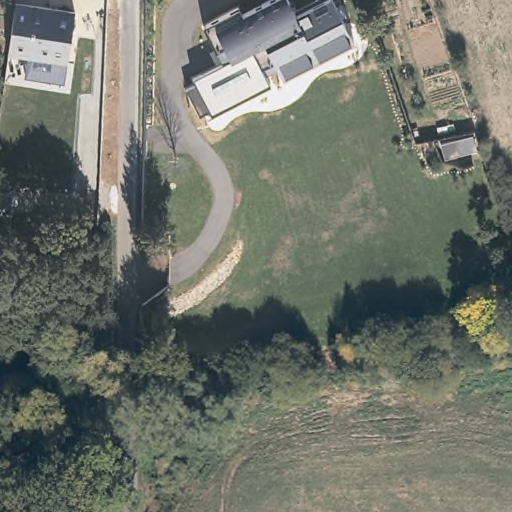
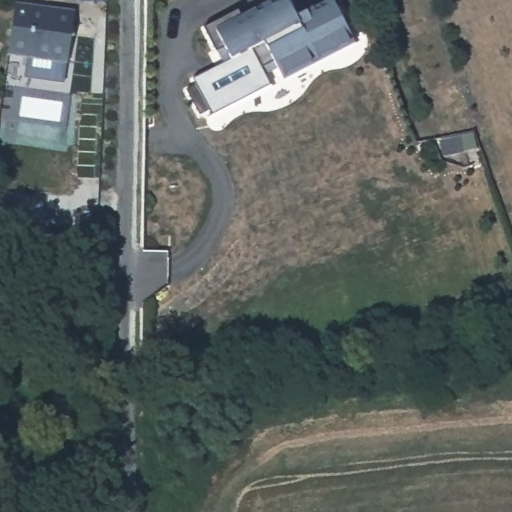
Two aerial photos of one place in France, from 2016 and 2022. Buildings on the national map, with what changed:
unchanged [(81,9),(79,29),(70,28),(64,60),(10,51),(17,0),(27,0),(81,9)]
unchanged [(209,105),(201,110),(189,87),(198,83),(196,76),(223,63),(204,26),(240,7),(243,14),(270,0),(289,0),(290,3),(296,0),(335,0),(355,41),(275,83),(279,91),(217,121),(209,105)]

